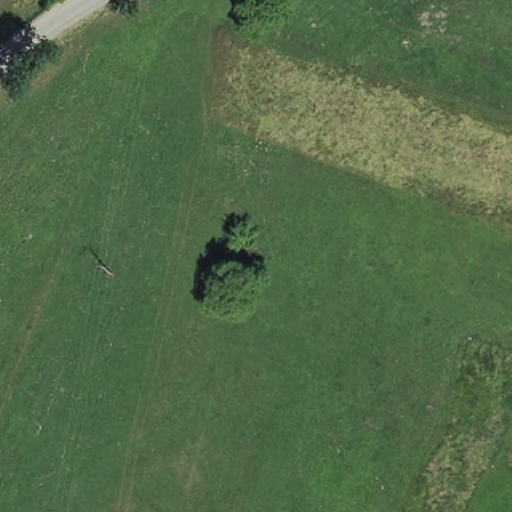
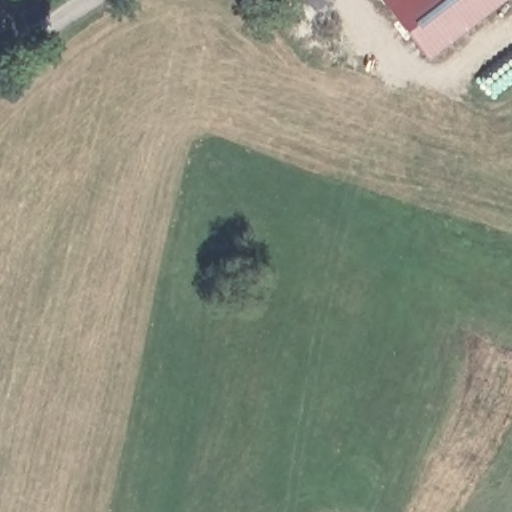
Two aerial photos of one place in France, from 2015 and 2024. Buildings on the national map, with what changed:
new [(384,0),(509,0),(430,61),(384,0)]

